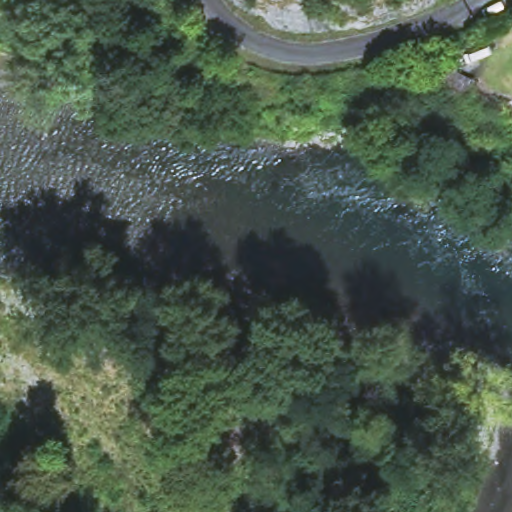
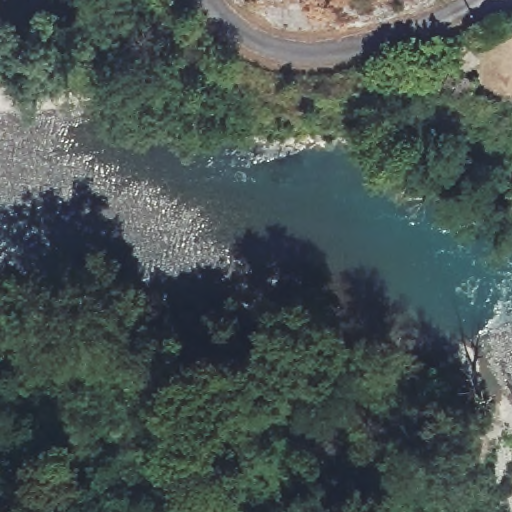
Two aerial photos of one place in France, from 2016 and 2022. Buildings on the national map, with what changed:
unchanged [(472,77),(461,98),(438,79),(448,63),(472,77)]

